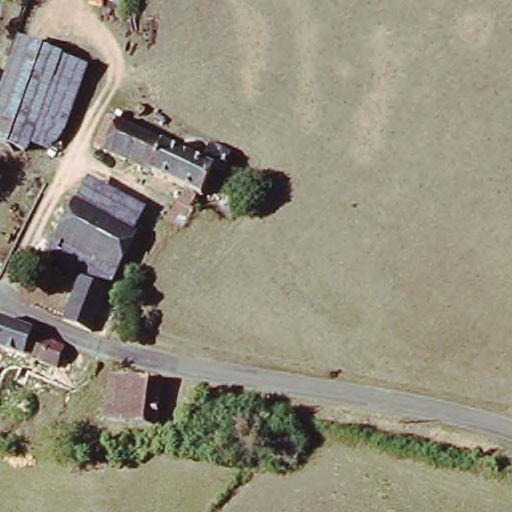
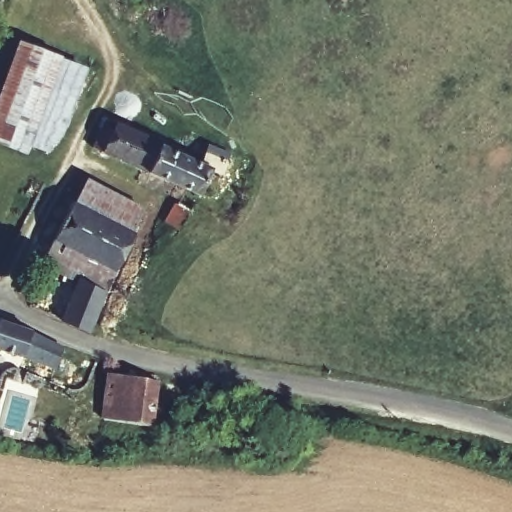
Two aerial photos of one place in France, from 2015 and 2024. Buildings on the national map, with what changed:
unchanged [(52,143),(47,151),(27,145),(23,154),(0,144),(0,83),(16,40),(85,67),(57,144),(52,143)]
unchanged [(123,113),(118,123),(157,141),(155,144),(191,162),(203,140),(235,155),(225,174),(217,170),(213,175),(203,170),(190,194),(195,196),(176,231),(159,221),(177,187),(87,142),(102,114),(105,115),(110,106),(123,113)]
unchanged [(122,195),(150,210),(135,234),(75,201),(88,177),(122,195)]
unchanged [(76,282),(41,262),(70,204),(66,202),(68,196),(75,201),(135,234),(86,331),(58,322),(76,282)]
unchanged [(30,330),(61,348),(52,368),(23,359),(0,352),(0,319),(30,327),(30,330)]
unchanged [(158,382),(154,426),(103,421),(107,376),(158,382)]

